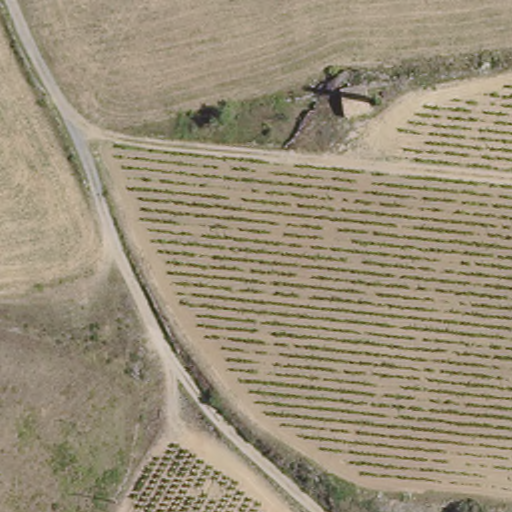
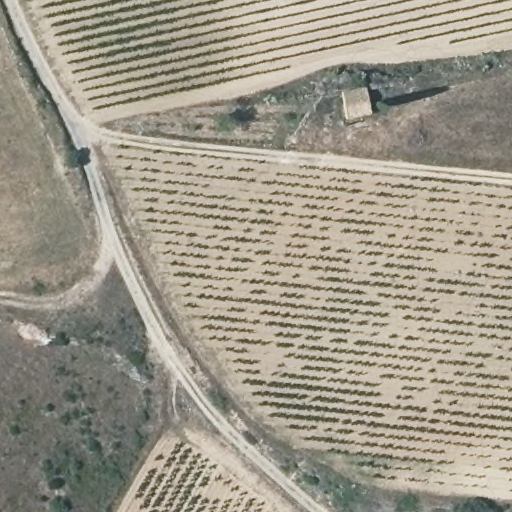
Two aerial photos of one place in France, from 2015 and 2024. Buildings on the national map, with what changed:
unchanged [(342,124),(334,92),(363,87),(370,116),(342,124)]

